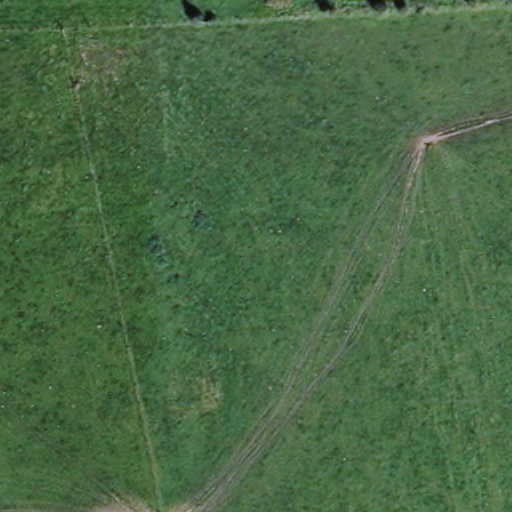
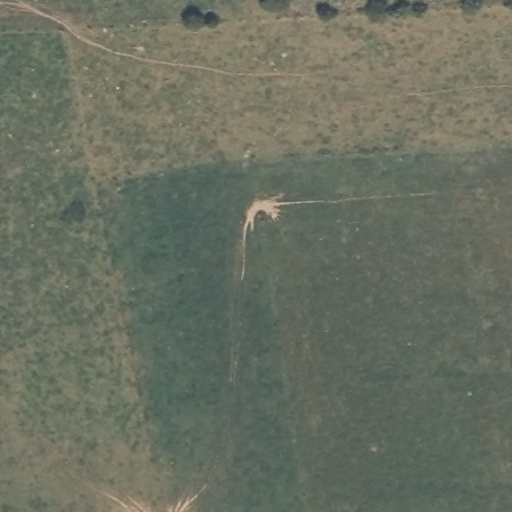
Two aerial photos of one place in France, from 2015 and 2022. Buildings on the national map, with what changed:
[]

